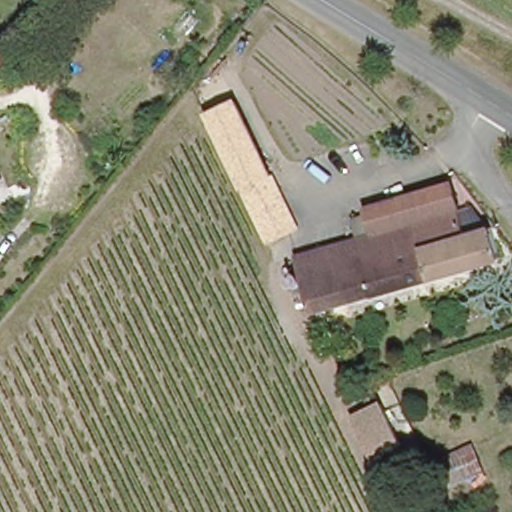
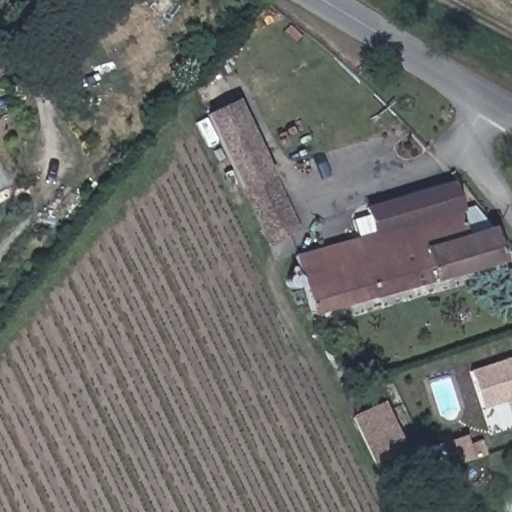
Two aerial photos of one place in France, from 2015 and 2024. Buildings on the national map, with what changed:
unchanged [(14,57),(0,77),(0,48),(14,57)]
unchanged [(267,243),(222,149),(204,112),(237,96),(297,227),(267,243)]
unchanged [(313,313),(295,257),(354,239),(350,221),(368,217),(366,205),(449,182),(467,233),(486,227),(498,261),(363,299),(313,313)]
new [(486,407),(474,370),(512,358),(512,405),(510,399),(486,407)]
unchanged [(354,427),(373,417),(369,410),(367,405),(376,400),(410,465),(399,471),(381,480),(354,427)]

